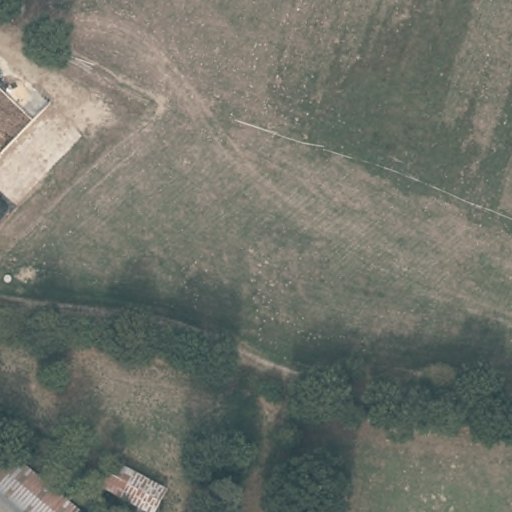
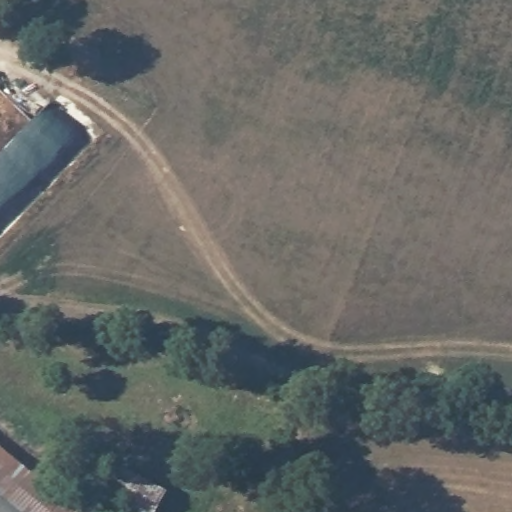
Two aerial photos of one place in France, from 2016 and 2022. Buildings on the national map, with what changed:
unchanged [(0,447),(73,512),(0,512),(0,447)]
unchanged [(167,492),(156,512),(138,512),(100,492),(115,465),(167,492)]

